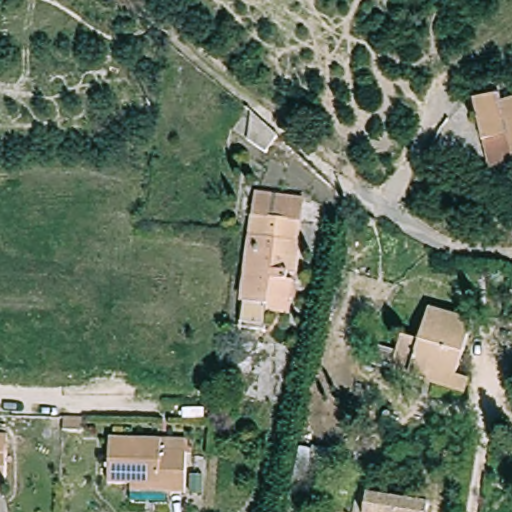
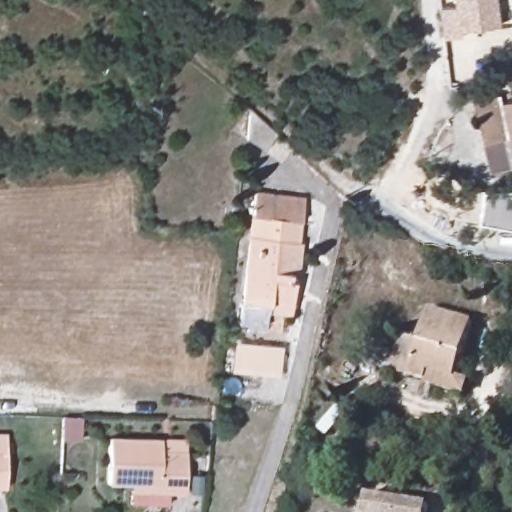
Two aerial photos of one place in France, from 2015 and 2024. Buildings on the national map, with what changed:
new [(456,6),(455,0),(497,0),(501,25),(461,29),(461,36),(444,38),(440,8),(456,6)]
unchanged [(502,166),(497,141),(470,146),(461,104),(493,97),(494,105),(512,101),(512,164),(502,166)]
unchanged [(303,201),(300,224),(252,217),(256,195),(303,201)]
unchanged [(290,304),(269,301),(264,334),(236,331),(249,240),(297,246),(290,304)]
unchanged [(448,373),(459,377),(456,392),(405,379),(415,338),(434,343),(442,312),(463,319),(448,373)]
unchanged [(164,445),(163,455),(185,456),(184,495),(162,494),(162,478),(106,476),(107,443),(164,445)]
unchanged [(10,462),(10,487),(0,487),(0,462),(10,462)]
unchanged [(369,489),(430,503),(427,512),(366,512),(364,511),(369,489)]

